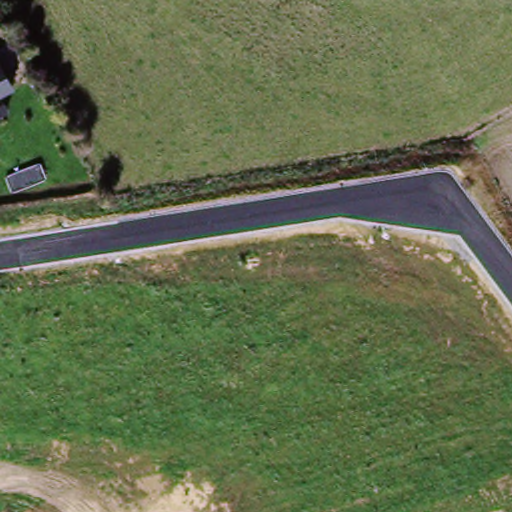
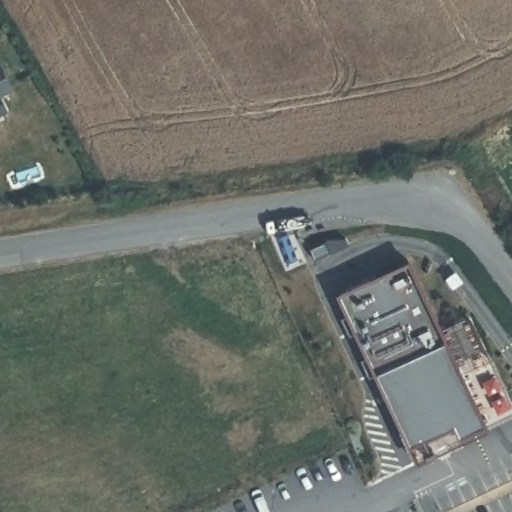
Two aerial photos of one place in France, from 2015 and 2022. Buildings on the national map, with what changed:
unchanged [(0,69),(8,90),(0,94),(0,69)]
unchanged [(1,103),(5,111),(0,113),(0,103),(1,103)]
new [(458,434),(452,421),(407,441),(373,370),(335,289),(407,257),(444,339),(482,420),(458,434)]

